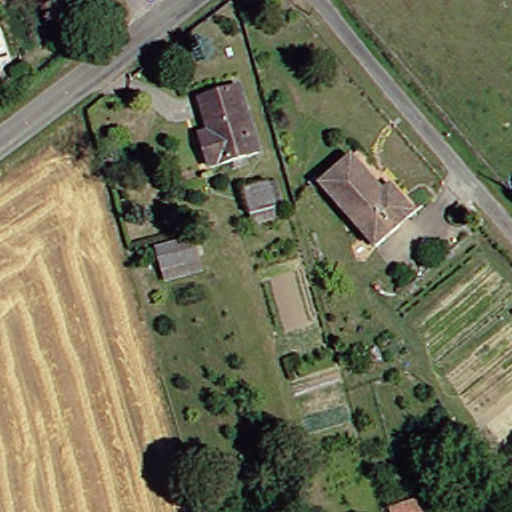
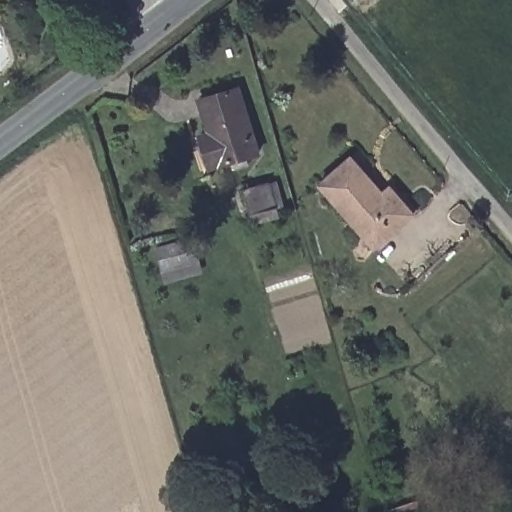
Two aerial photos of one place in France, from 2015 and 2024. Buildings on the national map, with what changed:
unchanged [(192,135),(205,130),(196,100),(231,91),(249,151),(215,161),(202,165),(192,135)]
unchanged [(405,214),(370,245),(335,202),(331,205),(312,182),(324,173),(351,151),(405,214)]
unchanged [(257,211),(248,181),(273,174),(282,207),(257,211)]
unchanged [(154,280),(146,245),(183,236),(191,271),(154,280)]

